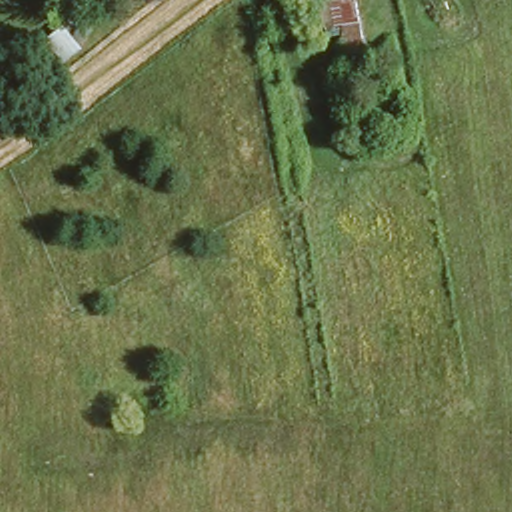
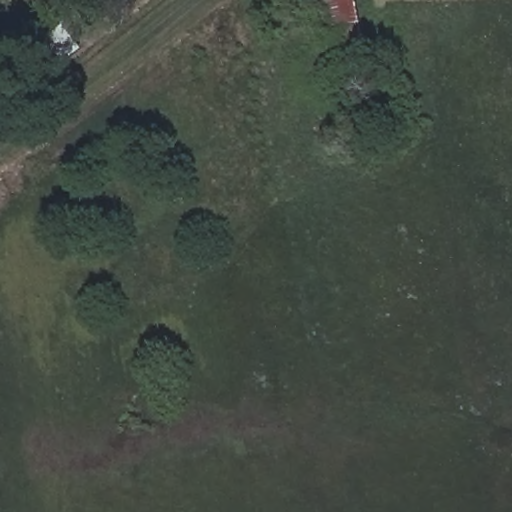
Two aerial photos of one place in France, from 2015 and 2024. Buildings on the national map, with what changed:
unchanged [(355,0),(362,41),(339,46),(337,31),(320,34),(315,0),(355,0)]
unchanged [(59,19),(85,45),(63,61),(41,34),(59,19)]

